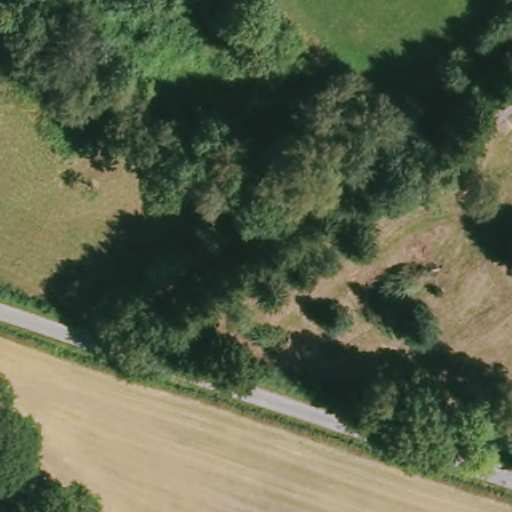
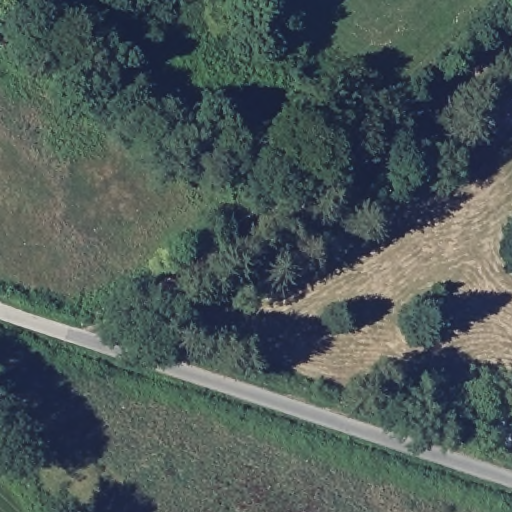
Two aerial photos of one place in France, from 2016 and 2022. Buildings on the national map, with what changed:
unchanged [(0,8),(0,0),(33,0),(50,15),(43,23),(32,35),(0,8)]
unchanged [(512,124),(509,126),(495,109),(512,94),(512,124)]
unchanged [(447,128),(462,147),(444,160),(430,142),(447,128)]
unchanged [(507,412),(499,436),(463,426),(471,402),(507,412)]

